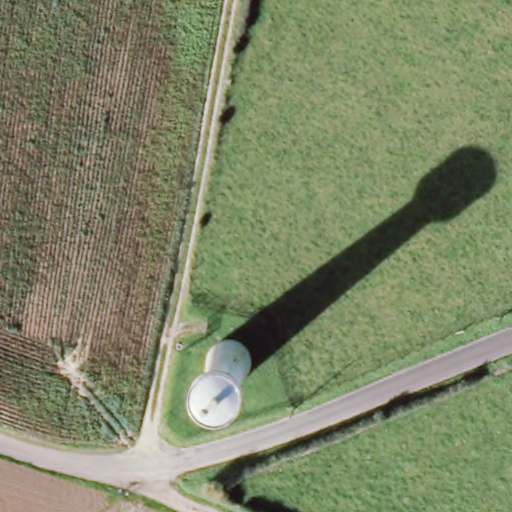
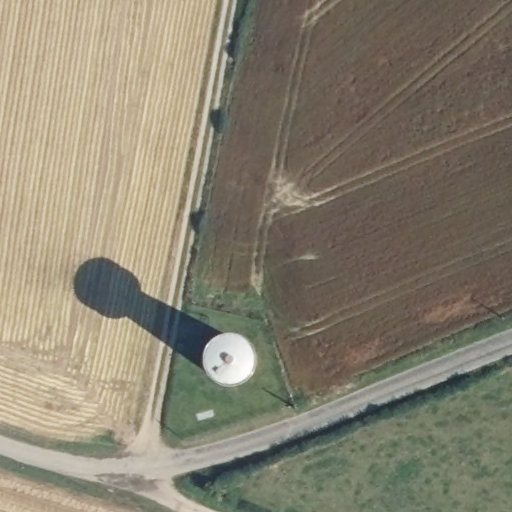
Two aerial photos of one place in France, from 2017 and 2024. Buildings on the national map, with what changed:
[]

